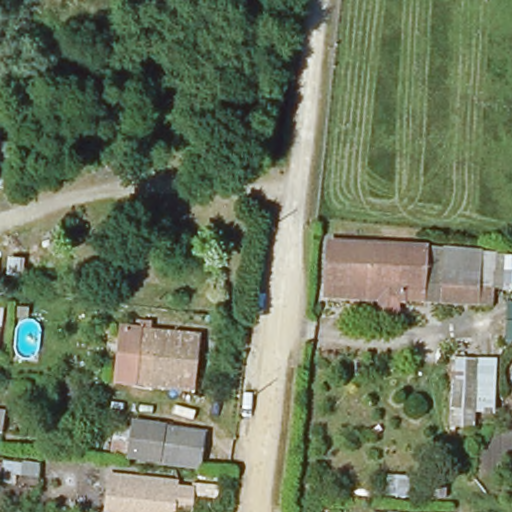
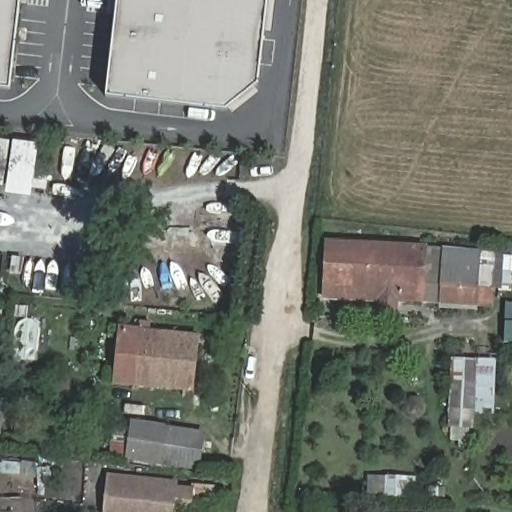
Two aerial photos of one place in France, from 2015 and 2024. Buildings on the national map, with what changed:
new [(29,6),(20,5),(11,90),(0,88),(0,0),(30,0),(29,6)]
new [(273,35),(265,34),(259,85),(256,87),(261,94),(233,115),(228,109),(226,110),(106,96),(116,16),(107,15),(109,0),(277,0),(273,35)]
new [(45,190),(32,188),(31,198),(3,194),(4,187),(0,186),(0,138),(39,145),(35,171),(48,174),(45,190)]
unchanged [(331,240),(431,249),(428,283),(427,290),(405,288),(403,302),(372,298),(374,286),(328,282),(331,240)]
new [(428,283),(441,284),(444,250),(448,250),(483,253),(497,255),(493,292),(493,306),(478,305),(440,304),(423,303),(403,302),(405,288),(427,290),(428,283)]
demolished [(479,291),(444,288),(448,250),(483,253),(479,291)]
new [(493,288),(497,255),(512,255),(512,291),(493,288)]
new [(399,314),(377,313),(377,302),(328,300),(328,282),(374,286),(372,298),(397,301),(399,314)]
unchanged [(512,305),(512,342),(510,341),(510,305),(512,305)]
unchanged [(116,382),(122,331),(157,336),(199,340),(193,390),(152,385),(116,382)]
unchanged [(499,361),(495,412),(475,411),(474,430),(449,428),(453,359),(499,361)]
unchanged [(7,440),(0,439),(0,411),(8,411),(7,440)]
unchanged [(126,463),(130,428),(160,431),(198,436),(195,471),(156,466),(126,463)]
unchanged [(385,473),(409,473),(408,497),(384,497),(385,473)]
unchanged [(160,487),(177,490),(175,510),(158,508),(158,512),(92,512),(96,475),(161,482),(160,487)]
unchanged [(376,512),(376,511),(391,512),(376,512)]

